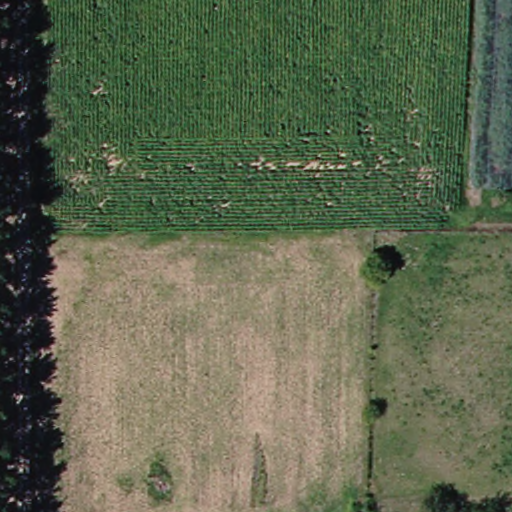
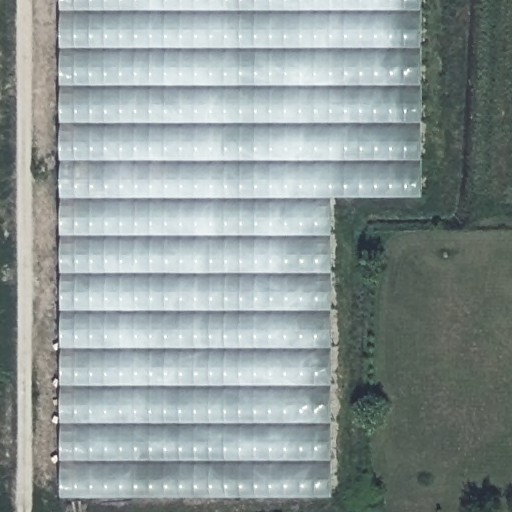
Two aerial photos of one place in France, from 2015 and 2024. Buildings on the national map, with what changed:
new [(423,193),(338,195),(336,493),(61,496),(60,0),(422,0),(423,193)]

